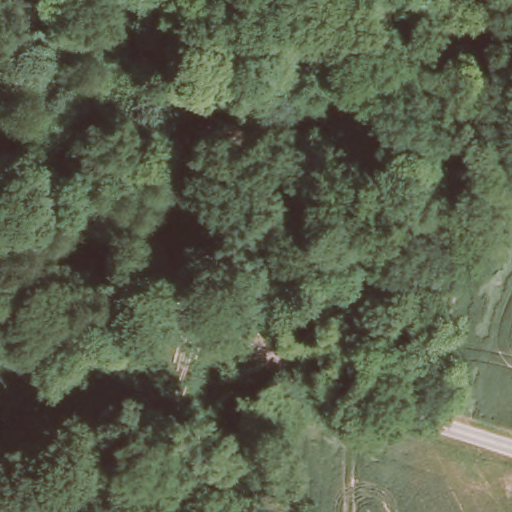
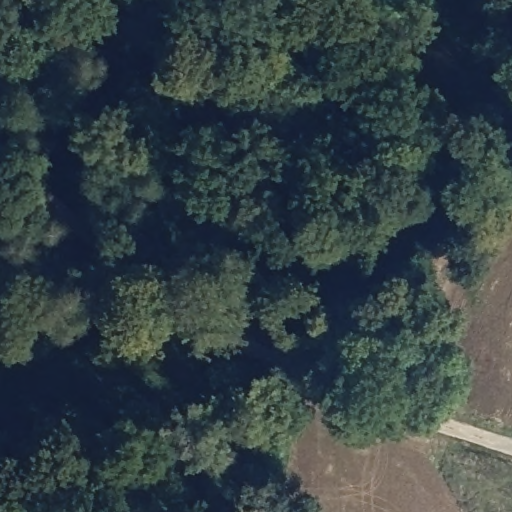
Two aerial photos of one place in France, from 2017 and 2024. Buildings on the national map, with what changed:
unchanged [(465,288),(425,300),(415,265),(456,254),(459,262),(465,288)]

